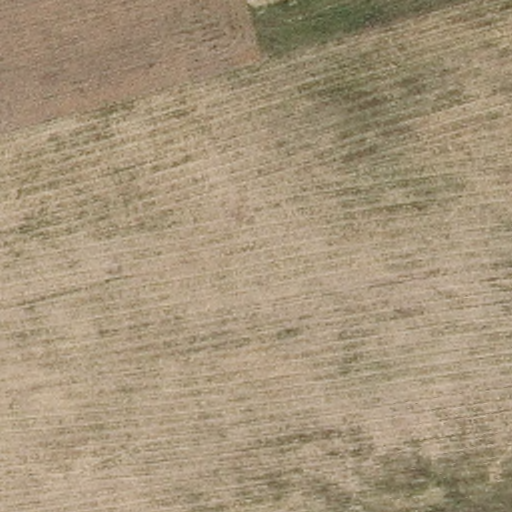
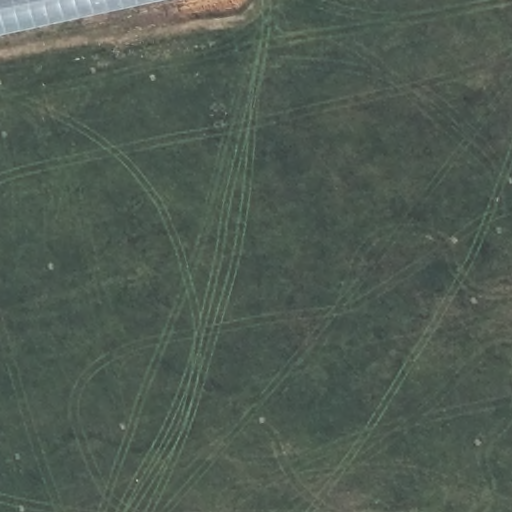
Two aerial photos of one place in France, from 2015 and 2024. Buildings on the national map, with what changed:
new [(0,0),(155,0),(0,35),(0,0)]

